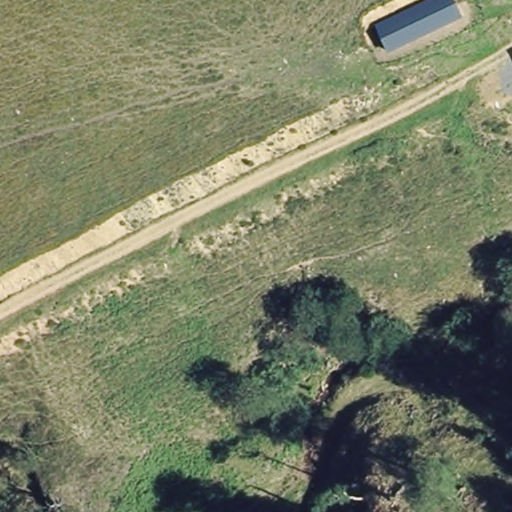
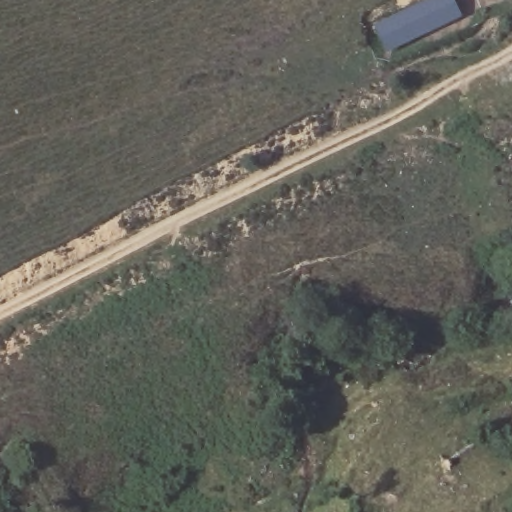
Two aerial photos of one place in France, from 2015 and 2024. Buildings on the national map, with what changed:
unchanged [(388,58),(374,29),(430,0),(453,0),(462,18),(388,58)]

